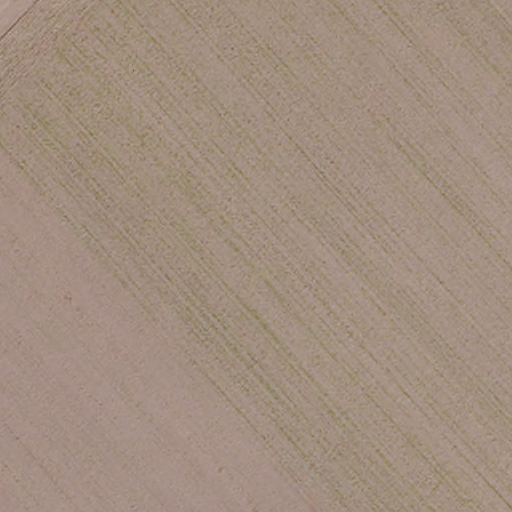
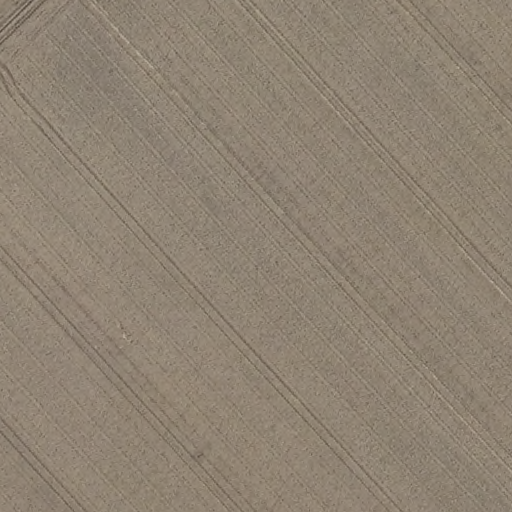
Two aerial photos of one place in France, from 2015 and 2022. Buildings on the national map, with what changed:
[]

